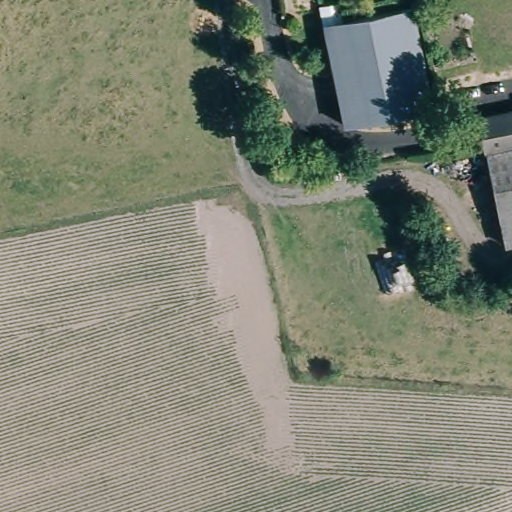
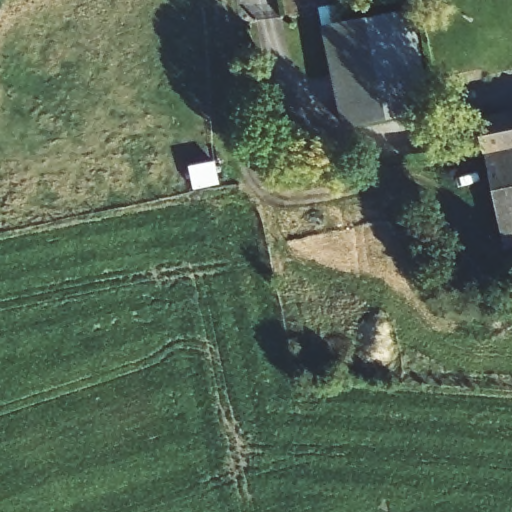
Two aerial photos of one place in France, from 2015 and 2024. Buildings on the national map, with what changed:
unchanged [(410,14),(430,110),(345,128),(325,31),(410,14)]
unchanged [(483,151),(476,120),(512,113),(512,145),(483,151)]
unchanged [(512,145),(512,222),(500,224),(483,151),(512,145)]
unchanged [(505,248),(500,224),(512,222),(512,247),(505,248)]

